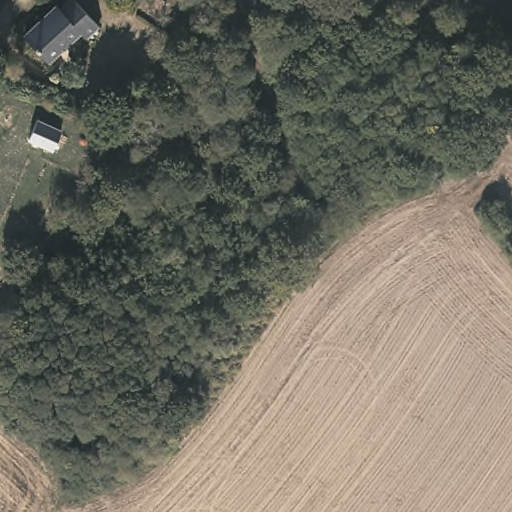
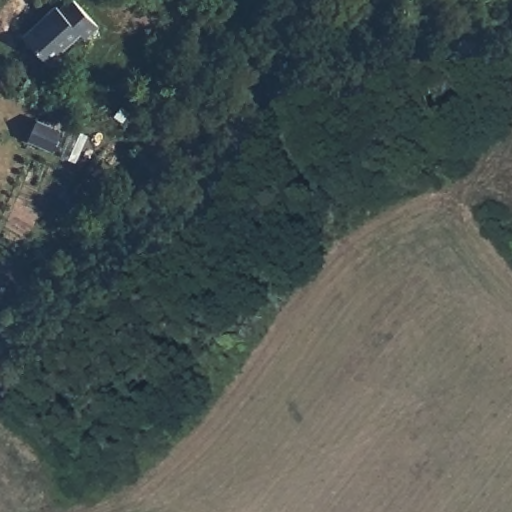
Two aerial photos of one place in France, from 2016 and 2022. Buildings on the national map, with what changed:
unchanged [(91,39),(83,30),(47,59),(25,31),(61,2),(64,5),(70,0),(82,0),(104,27),(91,39)]

